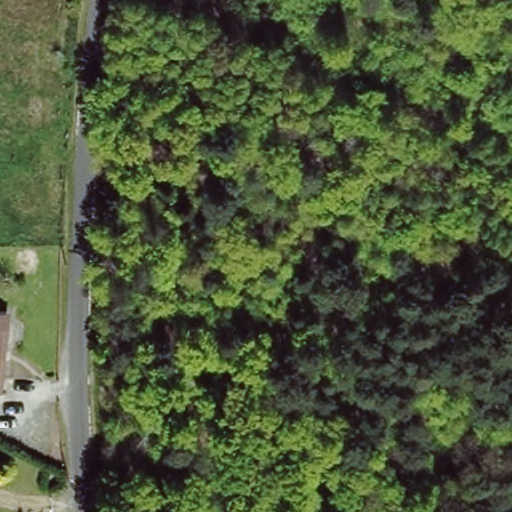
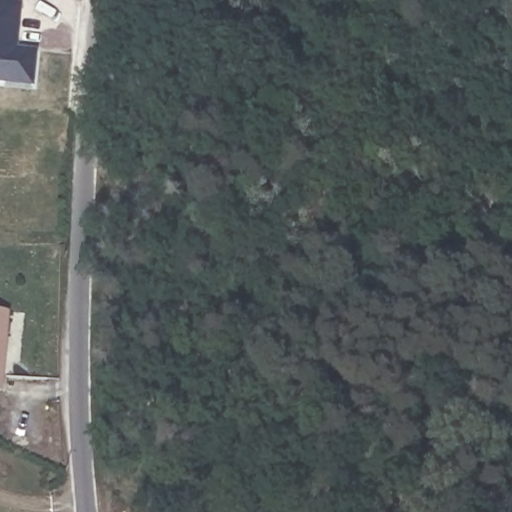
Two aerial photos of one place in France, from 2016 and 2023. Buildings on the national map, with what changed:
new [(5,86),(0,85),(0,5),(21,7),(18,42),(13,42),(12,52),(37,54),(34,84),(33,88),(5,86)]
unchanged [(4,315),(0,359),(0,315),(4,315)]

